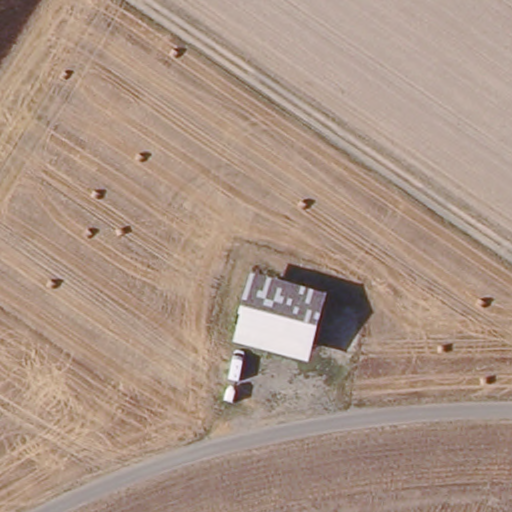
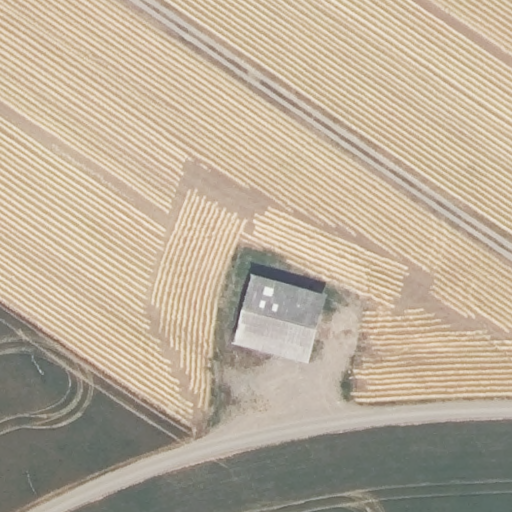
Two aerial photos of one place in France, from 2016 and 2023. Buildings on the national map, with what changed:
unchanged [(236,337),(252,273),(325,292),(310,359),(236,337)]

